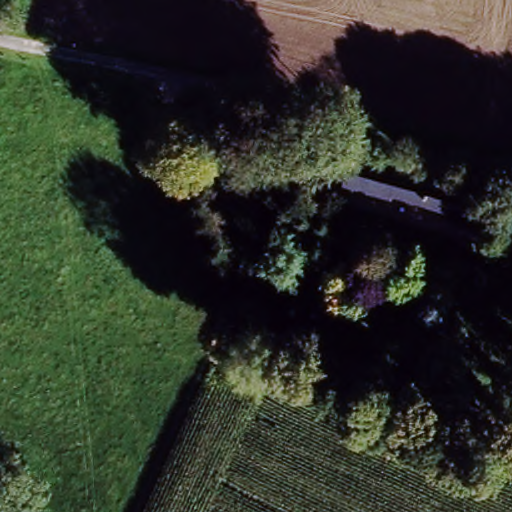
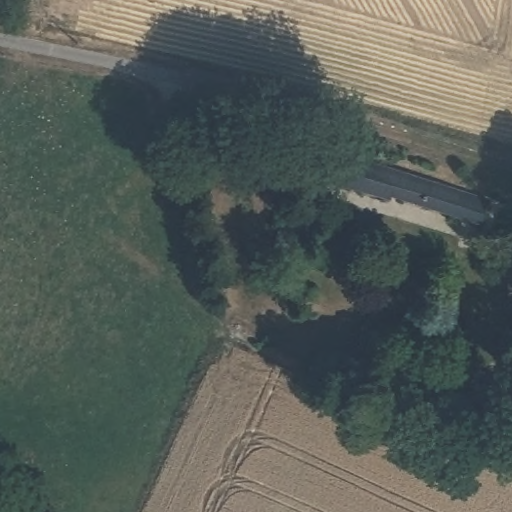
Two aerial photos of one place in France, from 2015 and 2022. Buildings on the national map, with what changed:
unchanged [(359,157),(408,172),(399,197),(397,204),(348,188),(359,157)]
unchanged [(492,199),(483,221),(399,197),(408,172),(492,199)]

